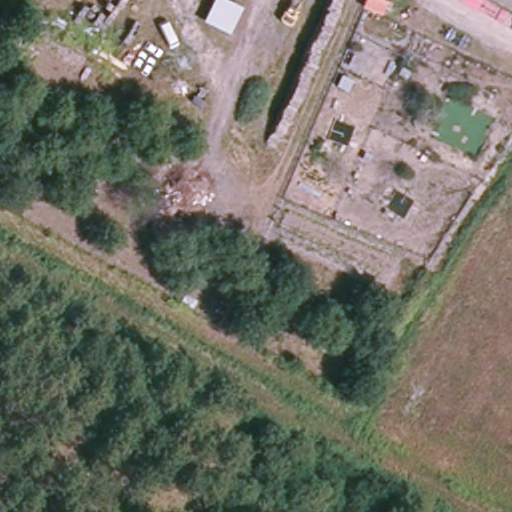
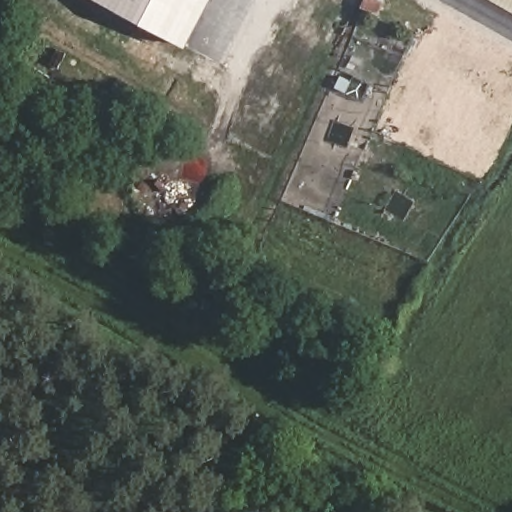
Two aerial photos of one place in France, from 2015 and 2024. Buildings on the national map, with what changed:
new [(96,0),(207,0),(181,47),(96,0)]
demolished [(223,0),(241,9),(227,36),(203,23),(214,0),(223,0)]

